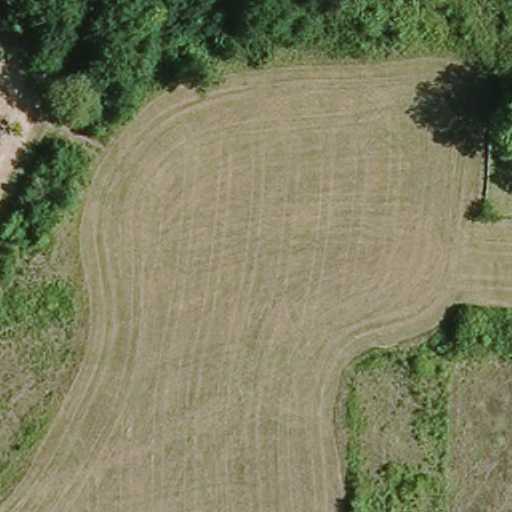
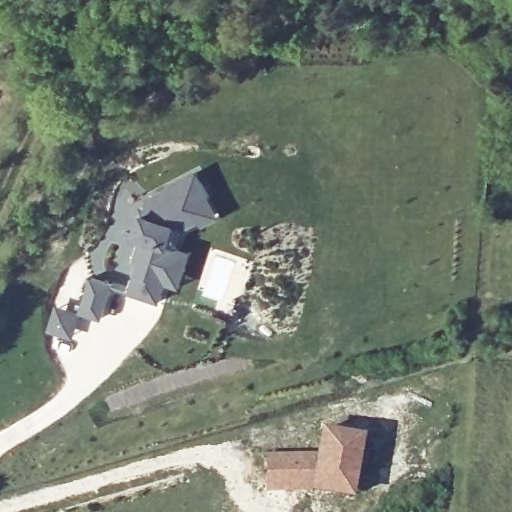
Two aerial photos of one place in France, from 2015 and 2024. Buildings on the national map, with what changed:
new [(221,216),(205,225),(203,220),(175,235),(172,247),(192,251),(183,286),(168,283),(163,302),(129,292),(139,262),(133,261),(140,244),(129,240),(139,208),(146,209),(149,197),(199,173),(221,216)]
new [(358,441),(355,467),(351,478),(344,484),(338,487),(269,490),(270,456),(321,458),(323,434),(338,435),(339,424),(358,425),(358,441)]

